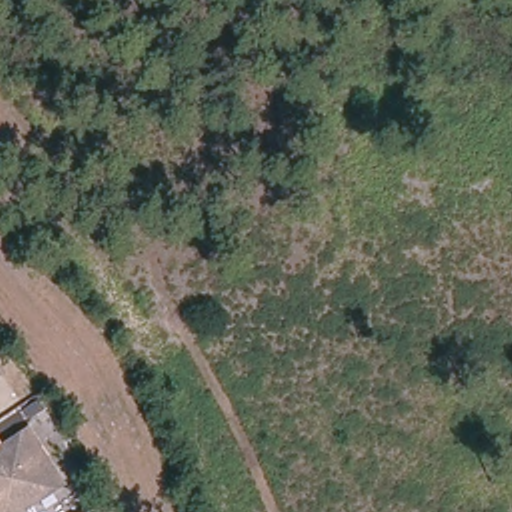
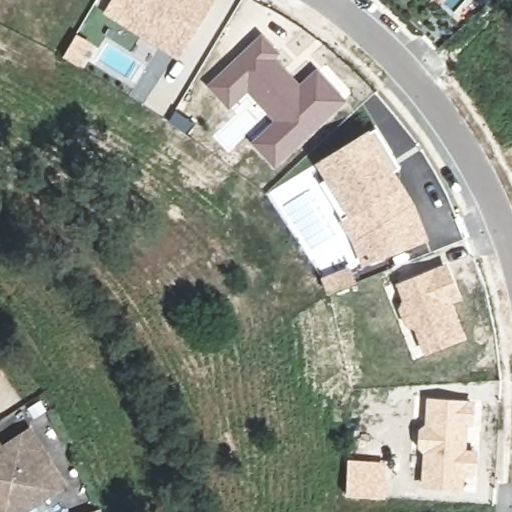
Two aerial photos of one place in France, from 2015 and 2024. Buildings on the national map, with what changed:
new [(102,14),(111,0),(213,0),(214,0),(178,60),(102,14)]
new [(435,0),(438,0),(437,1),(435,0)]
new [(280,54),(276,58),(299,83),(316,68),(347,101),(275,168),(250,142),(273,120),(247,93),(230,110),(207,84),(261,33),(280,54)]
new [(361,267),(351,242),(338,220),(342,218),(320,183),(326,180),(315,163),(369,129),(403,185),(400,187),(415,204),(428,240),(361,267)]
new [(445,262),(461,297),(452,302),(464,337),(424,355),(413,328),(406,326),(399,309),(402,300),(395,283),(445,262)]
new [(351,266),(357,282),(327,294),(321,278),(351,266)]
new [(425,423),(427,397),(465,400),(462,451),(474,451),(472,470),(461,469),(459,491),(421,486),(423,454),(418,446),(418,429),(425,423)]
unchanged [(48,455),(37,461),(54,487),(18,512),(0,512),(0,449),(30,429),(48,455)]
new [(387,461),(386,497),(347,495),(348,459),(387,461)]
new [(103,510),(104,512),(99,512),(103,510)]

